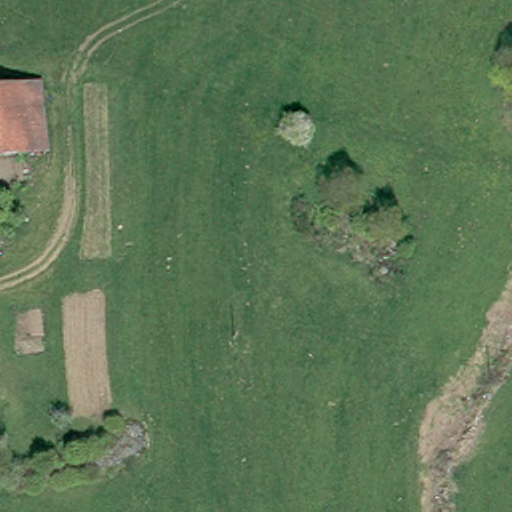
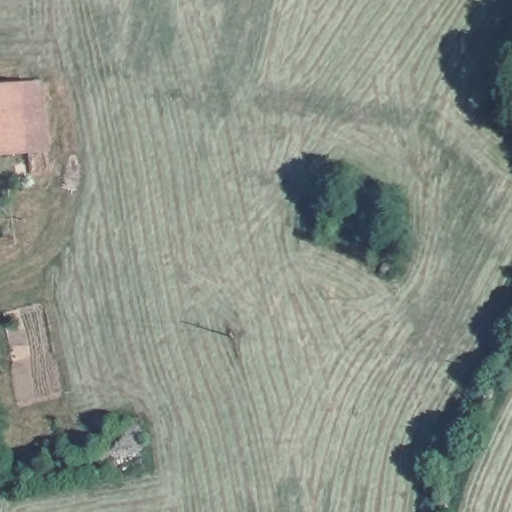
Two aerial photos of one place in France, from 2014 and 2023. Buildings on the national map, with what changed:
unchanged [(42,86),(45,120),(45,121),(48,152),(35,154),(0,157),(0,89),(22,87),(42,86)]

